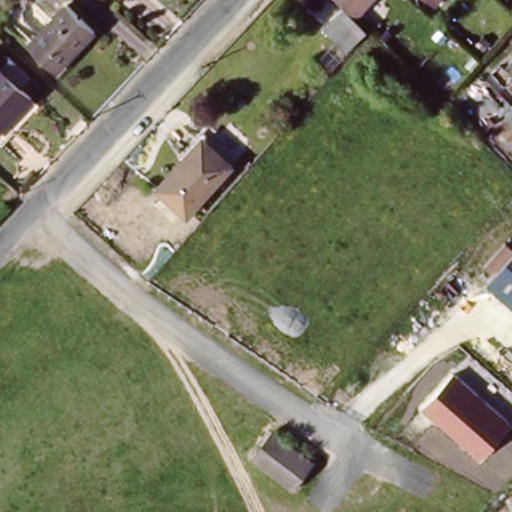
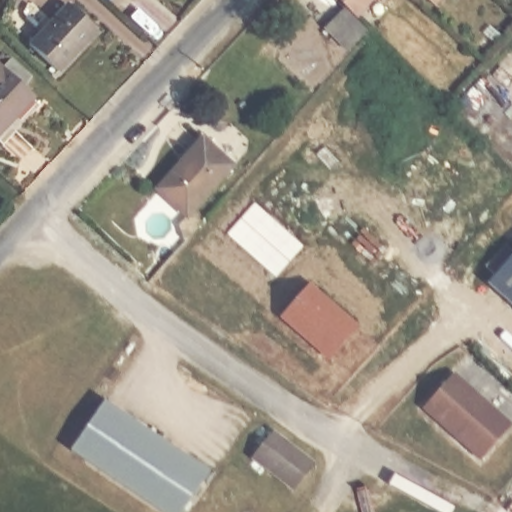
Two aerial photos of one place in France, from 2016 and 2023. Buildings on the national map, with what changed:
unchanged [(362,11),(351,0),(376,0),(364,13),(386,35),(368,54),(344,31),(362,11)]
unchanged [(435,0),(445,0),(440,5),(435,0)]
unchanged [(62,73),(35,47),(70,9),(97,34),(62,73)]
unchanged [(5,143),(0,138),(0,63),(42,102),(5,143)]
unchanged [(182,207),(164,192),(207,141),(226,157),(237,167),(192,217),(182,207)]
new [(277,278),(228,235),(257,203),(306,247),(277,278)]
unchanged [(512,254),(512,306),(487,283),(512,254)]
new [(332,361),(280,318),(311,282),(362,325),(332,361)]
unchanged [(510,423),(482,462),(422,413),(452,374),(510,423)]
new [(184,512),(163,512),(71,450),(105,399),(212,471),(184,512)]
unchanged [(313,469),(296,492),(255,461),(274,438),(313,469)]

